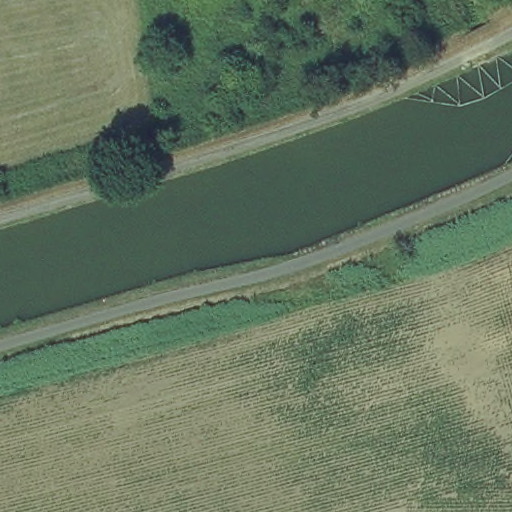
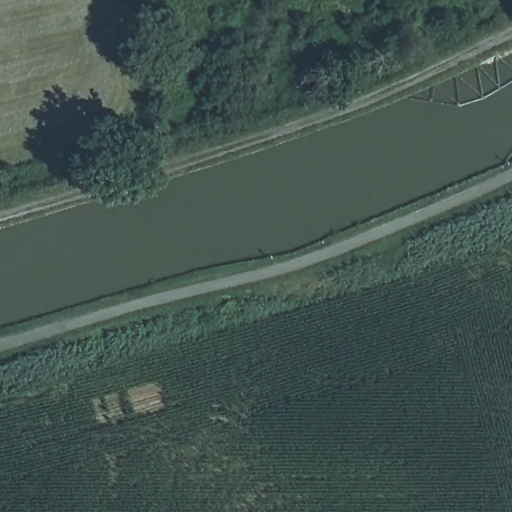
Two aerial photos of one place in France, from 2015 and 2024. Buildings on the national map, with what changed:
[]

